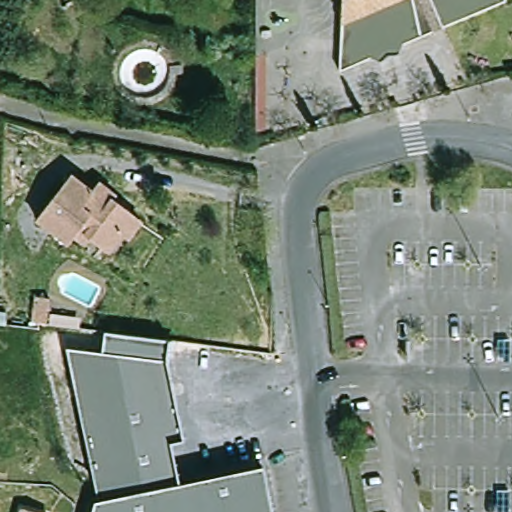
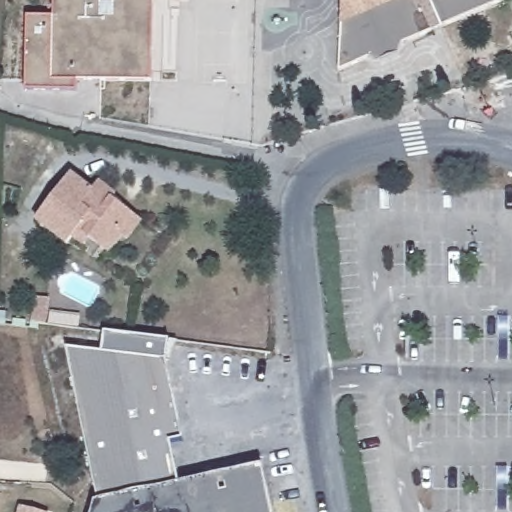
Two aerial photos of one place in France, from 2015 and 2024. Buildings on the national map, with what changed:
new [(52,16),(52,0),(153,0),(151,81),(77,81),(76,90),(25,90),(27,16),(52,16)]
unchanged [(393,52),(372,62),(365,57),(340,69),(344,15),(378,0),(425,0),(436,25),(395,44),(393,52)]
unchanged [(345,0),(378,0),(344,15),(345,0)]
unchanged [(436,25),(425,0),(437,0),(446,21),(436,25)]
unchanged [(437,0),(494,0),(446,21),(437,0)]
unchanged [(65,244),(34,221),(67,178),(89,194),(95,186),(108,196),(105,199),(123,214),(139,226),(128,240),(120,234),(107,252),(88,237),(81,245),(71,237),(65,244)]
unchanged [(49,300),(47,319),(46,325),(41,324),(31,323),(34,298),(49,300)]
unchanged [(65,347),(101,351),(103,333),(170,342),(168,359),(185,439),(171,443),(176,462),(93,479),(65,347)]
unchanged [(176,462),(180,483),(263,466),(272,512),(90,512),(94,501),(97,501),(93,479),(176,462)]

